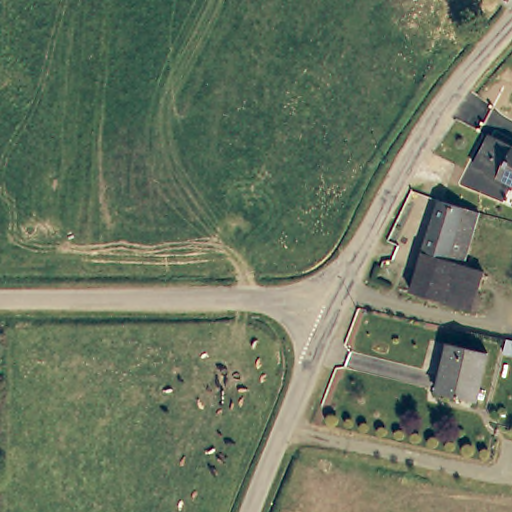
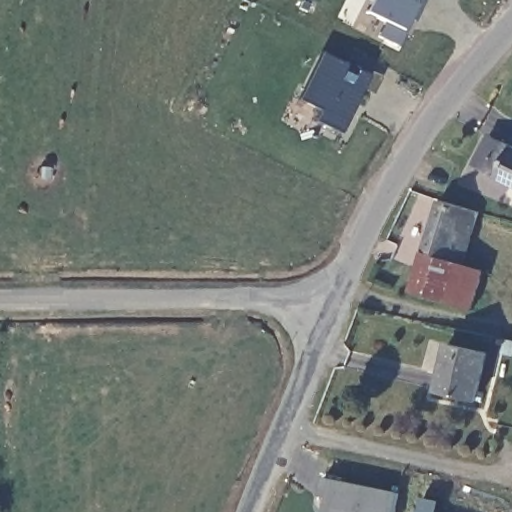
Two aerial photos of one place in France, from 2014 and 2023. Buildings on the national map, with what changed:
new [(409,20),(404,31),(396,47),(376,37),(385,23),(363,13),(370,0),(421,0),(422,1),(412,22),(409,20)]
new [(340,134),(315,121),(320,111),(297,99),(321,52),(368,76),(340,134)]
unchanged [(476,167),(492,137),(512,147),(512,185),(476,167)]
unchanged [(442,199),(478,214),(459,263),(422,247),(440,206),(442,199)]
unchanged [(426,302),(392,285),(400,263),(413,270),(422,247),(459,263),(481,273),(467,310),(465,316),(426,302)]
unchanged [(435,395),(445,346),(482,351),(473,402),(435,395)]
new [(396,512),(326,512),(328,497),(320,494),(324,477),(399,493),(396,512)]
new [(422,497),(441,501),(439,512),(420,512),(422,497)]

